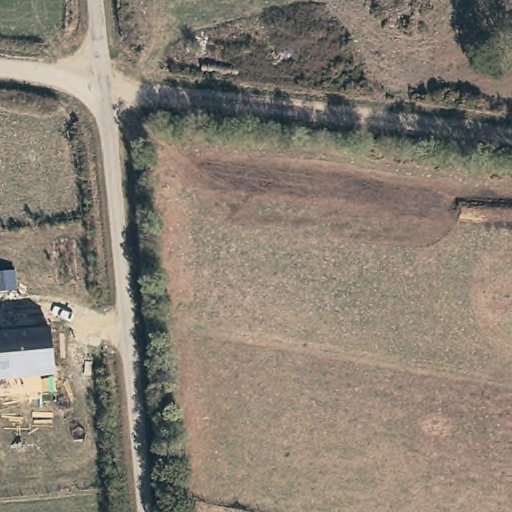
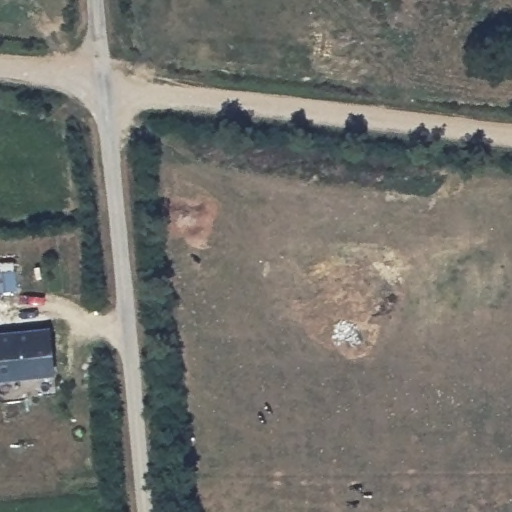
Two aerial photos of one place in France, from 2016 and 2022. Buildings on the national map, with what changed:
unchanged [(52,330),(55,368),(36,370),(27,377),(2,380),(0,378),(0,335),(52,330)]

